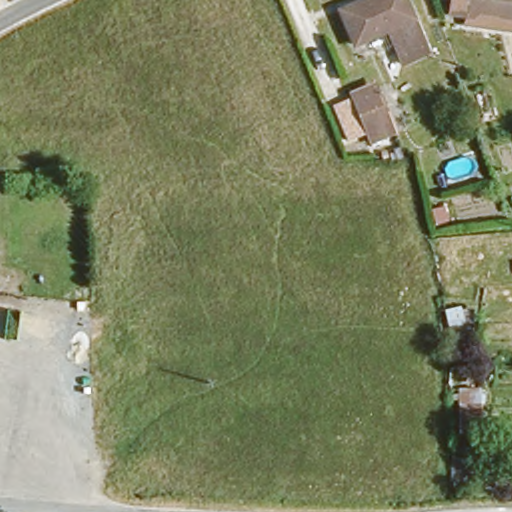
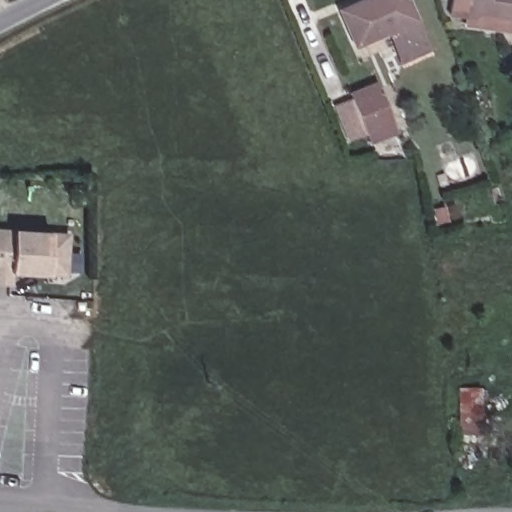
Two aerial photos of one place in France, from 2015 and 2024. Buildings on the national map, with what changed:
unchanged [(429,45),(402,55),(387,19),(358,30),(344,0),(410,0),(429,45)]
unchanged [(471,18),(472,10),(452,9),(453,0),(512,0),(512,23),(471,18)]
unchanged [(393,121),(365,135),(347,94),(377,81),(393,121)]
new [(0,229),(67,234),(65,276),(11,273),(10,285),(0,285),(0,229)]

